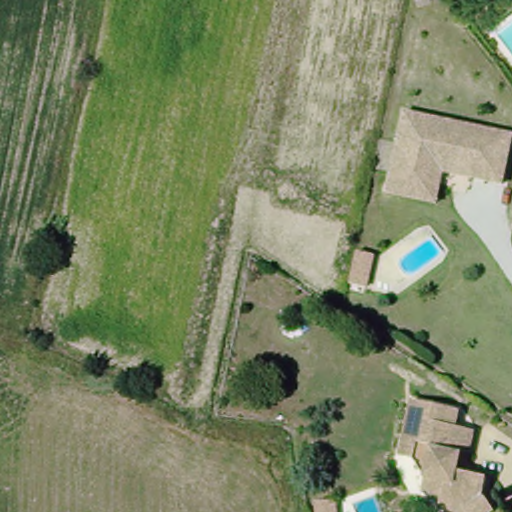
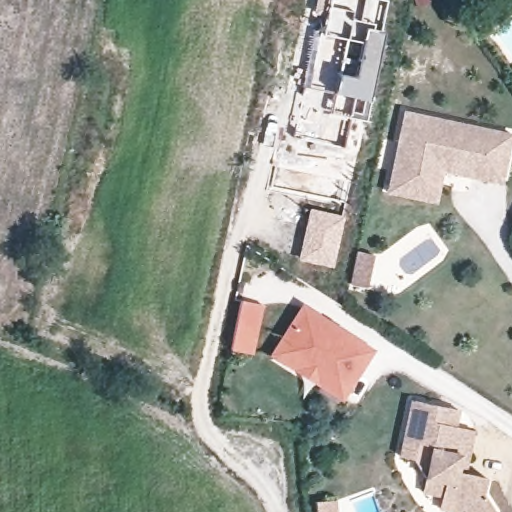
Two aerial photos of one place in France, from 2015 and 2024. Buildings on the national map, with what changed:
new [(300,79),(307,81),(322,13),(314,11),(316,0),(389,0),(365,119),(355,117),(348,152),(287,139),(300,79)]
unchanged [(395,120),(505,136),(497,186),(442,178),(438,200),(385,193),(395,120)]
new [(310,208),(345,215),(337,267),(300,261),(310,208)]
new [(357,249),(372,252),(367,285),(351,282),(357,249)]
new [(242,299),(265,304),(254,352),(231,348),(242,299)]
new [(375,350),(342,403),(270,354),(302,303),(375,350)]
unchanged [(434,501),(419,497),(419,483),(417,479),(408,461),(397,458),(411,400),(452,412),(450,428),(467,433),(462,457),(459,476),(480,483),(477,498),(484,512),(440,512),(435,511),(434,501)]
unchanged [(327,495),(329,512),(308,512),(307,497),(327,495)]

